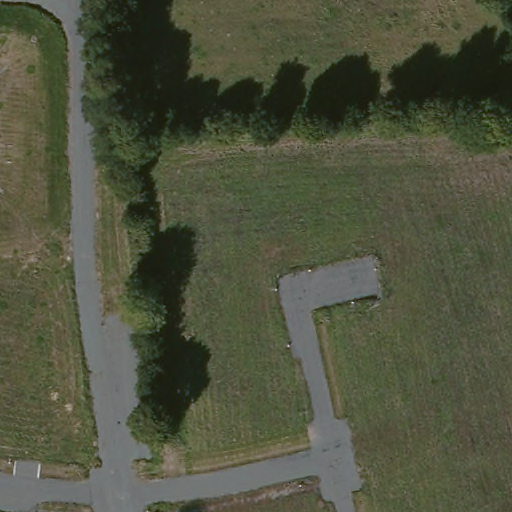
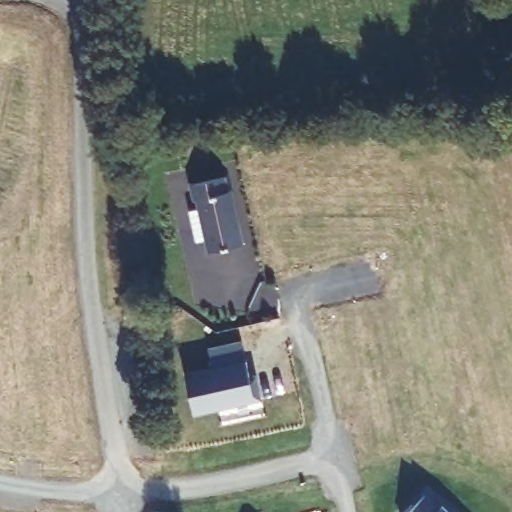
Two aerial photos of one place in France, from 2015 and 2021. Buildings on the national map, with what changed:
new [(223,176),(227,189),(231,188),(245,246),(205,255),(190,185),(223,176)]
new [(247,359),(250,373),(256,374),(262,399),(194,413),(185,372),(247,359)]

